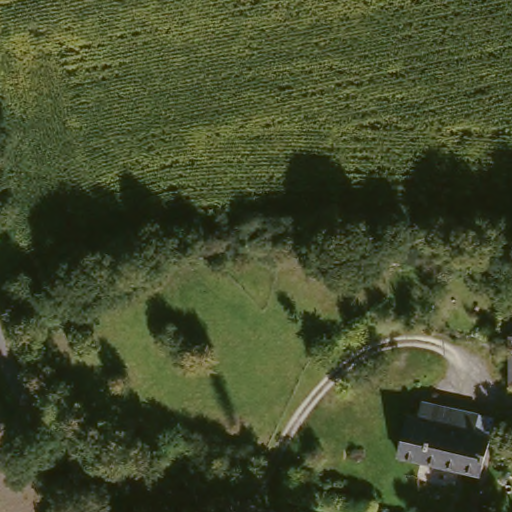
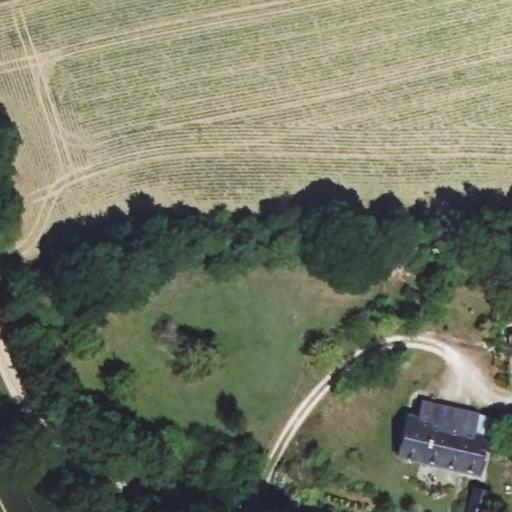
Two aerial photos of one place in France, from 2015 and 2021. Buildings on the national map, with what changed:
unchanged [(511,391),(512,333),(512,391),(511,391)]
unchanged [(484,478),(399,460),(395,459),(403,422),(420,426),(492,440),(484,478)]
unchanged [(500,507),(498,512),(477,512),(481,500),(500,507)]

